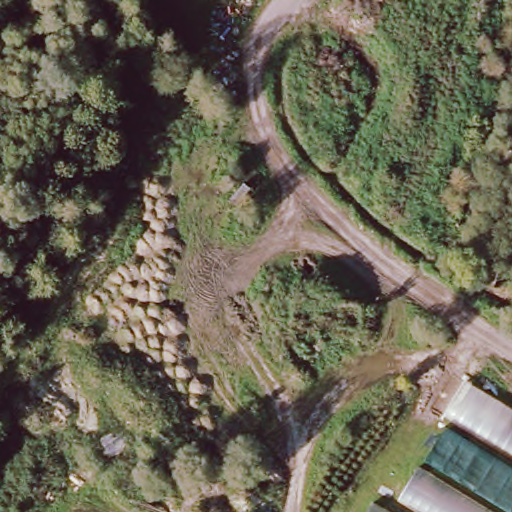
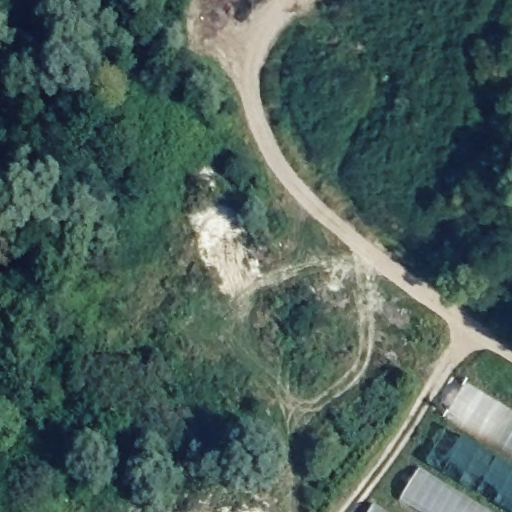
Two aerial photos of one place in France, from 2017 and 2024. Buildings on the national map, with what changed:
unchanged [(413,467),(423,473),(453,428),(446,424),(464,389),(512,418),(512,512),(385,512),(413,467)]

